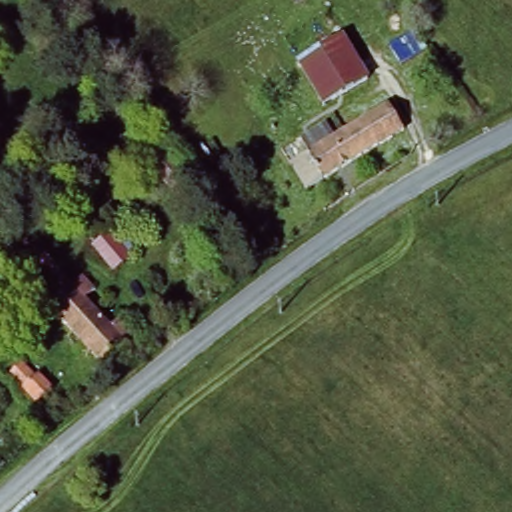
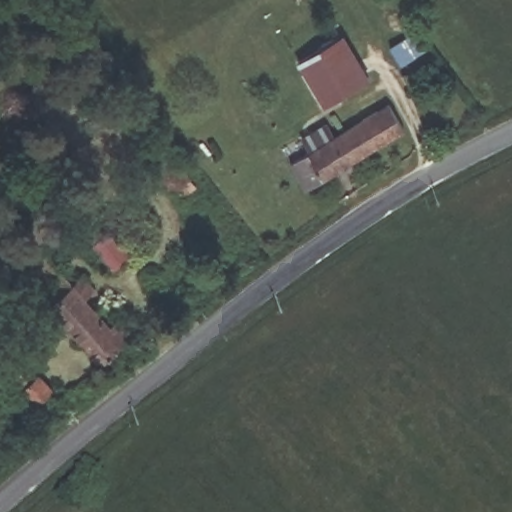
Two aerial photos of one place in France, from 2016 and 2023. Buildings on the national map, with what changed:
unchanged [(365,73),(317,102),(294,60),(340,32),(365,73)]
unchanged [(402,66),(422,50),(432,64),(413,79),(402,66)]
unchanged [(292,159),(357,119),(381,104),(397,130),(372,145),(305,184),(292,159)]
unchanged [(185,166),(170,180),(148,156),(164,142),(185,166)]
unchanged [(129,245),(113,260),(90,234),(106,219),(129,245)]
unchanged [(123,343),(100,365),(50,310),(37,295),(22,279),(45,259),(60,275),(73,290),(108,327),(120,317),(134,333),(123,343)]
unchanged [(30,297),(44,318),(32,326),(18,305),(30,297)]
unchanged [(20,358),(49,383),(35,399),(9,376),(7,374),(20,358)]

